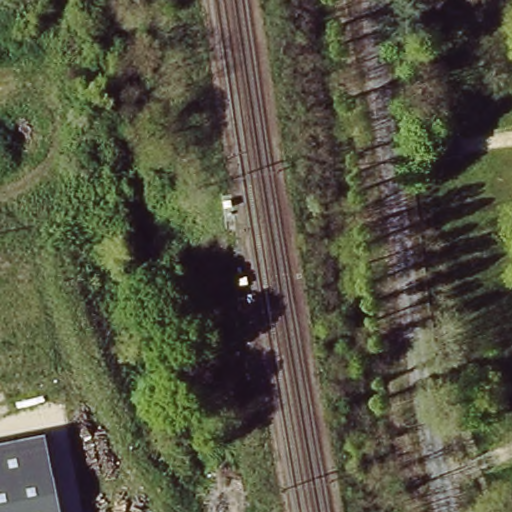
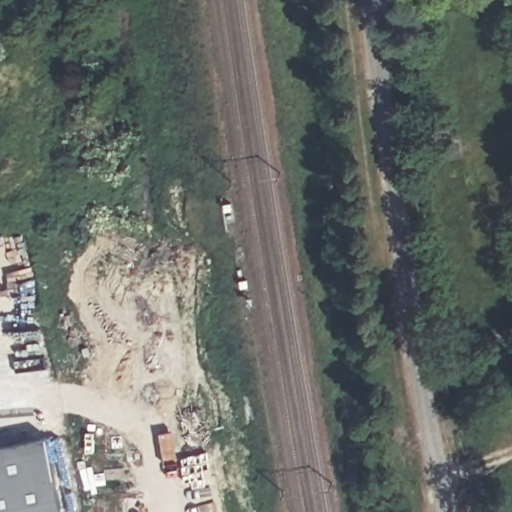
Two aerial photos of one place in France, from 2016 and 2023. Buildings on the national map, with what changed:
unchanged [(459,139),(462,154),(446,157),(443,141),(459,139)]
unchanged [(0,512),(0,444),(45,435),(61,512),(0,512)]

